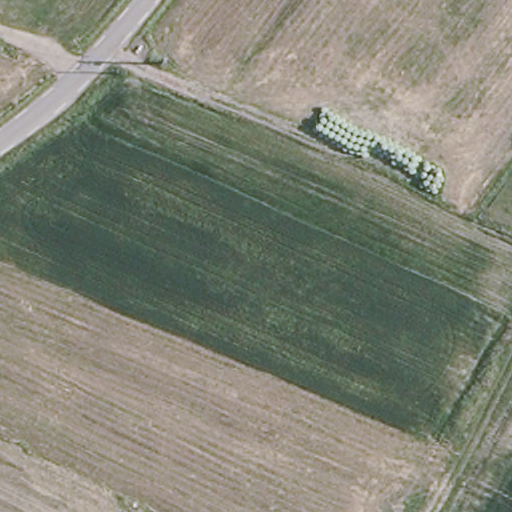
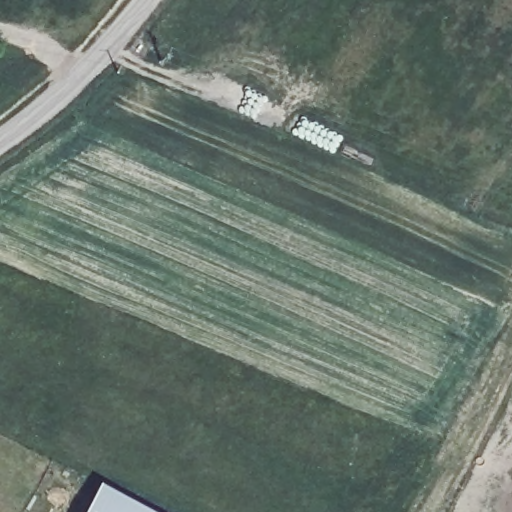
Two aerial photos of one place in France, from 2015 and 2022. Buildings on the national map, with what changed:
new [(145,512),(87,512),(100,489),(145,512)]

